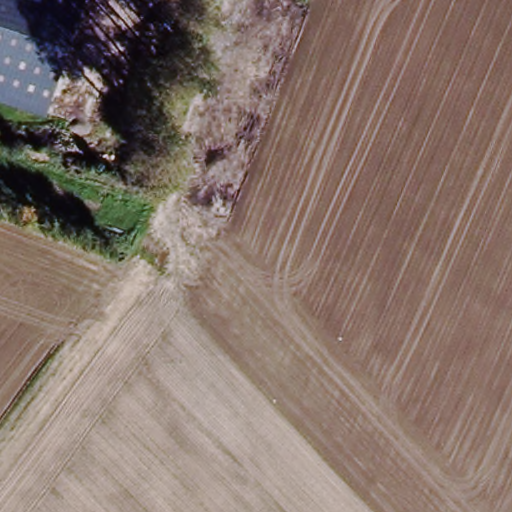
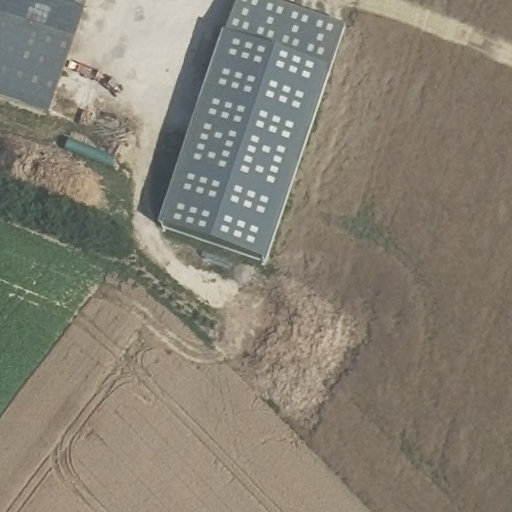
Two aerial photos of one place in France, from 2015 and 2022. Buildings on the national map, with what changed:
unchanged [(0,103),(0,0),(86,0),(46,118),(0,103)]
new [(258,0),(299,14),(283,58),(334,76),(266,270),(164,234),(245,0),(258,0)]
new [(299,14),(349,31),(334,76),(283,58),(299,14)]

